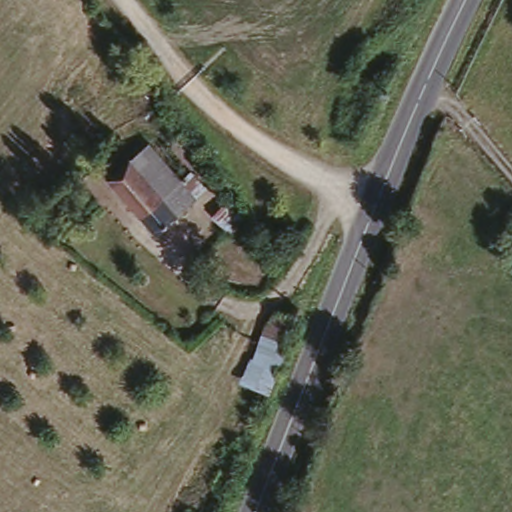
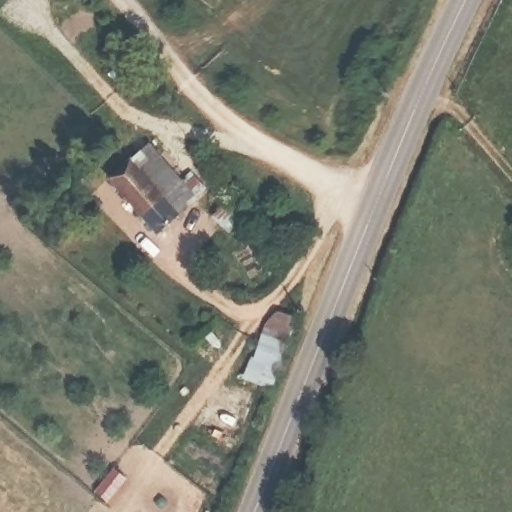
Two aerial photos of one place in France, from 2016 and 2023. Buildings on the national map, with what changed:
unchanged [(205,191),(157,241),(106,182),(146,144),(180,182),(192,174),(205,191)]
unchanged [(227,199),(250,216),(232,236),(214,217),(227,199)]
unchanged [(243,382),(263,331),(287,341),(267,392),(243,382)]

